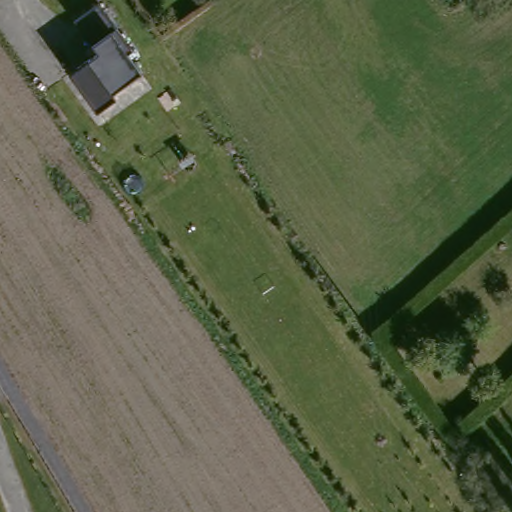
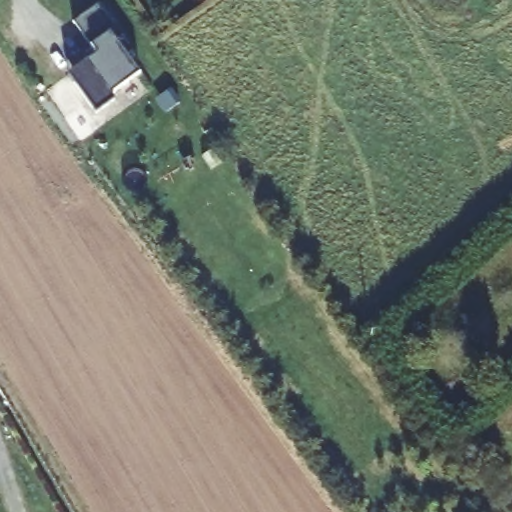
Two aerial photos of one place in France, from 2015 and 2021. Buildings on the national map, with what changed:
unchanged [(145,77),(97,112),(71,71),(98,52),(77,27),(102,7),(145,77)]

